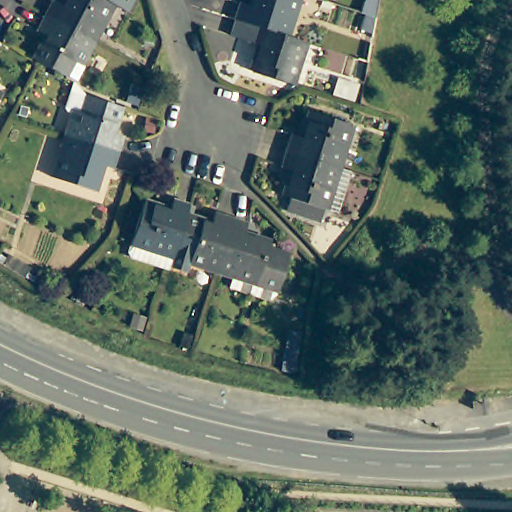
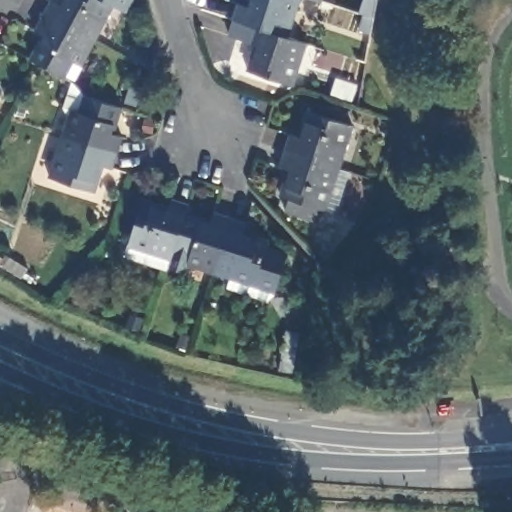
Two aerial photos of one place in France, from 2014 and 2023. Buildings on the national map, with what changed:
unchanged [(57,2),(68,7),(72,0),(138,0),(131,12),(117,4),(97,41),(77,31),(50,17),(57,2)]
unchanged [(282,33),(253,24),(249,22),(236,18),(232,17),(230,16),(236,0),(237,0),(248,4),(250,0),(293,0),(282,33)]
unchanged [(79,84),(76,80),(69,77),(44,63),(40,61),(52,37),(41,32),(50,17),(77,31),(97,41),(85,66),(87,67),(79,84)]
unchanged [(236,18),(249,22),(253,24),(282,33),(300,40),(286,81),(247,67),(256,42),(227,32),(232,17),(236,18)]
unchanged [(72,106),(80,109),(87,92),(119,102),(110,129),(122,134),(117,148),(64,132),(72,106)]
unchanged [(288,150),(293,135),(304,139),(313,114),(353,127),(340,167),(288,150)]
unchanged [(117,148),(111,166),(99,162),(91,187),(50,174),(64,132),(117,148)]
unchanged [(339,169),(352,173),(341,209),(328,204),(327,205),(287,192),(294,170),(283,166),(288,150),(340,167),(339,169)]
unchanged [(174,247),(174,248),(171,257),(129,243),(142,203),(168,212),(172,200),(188,205),(184,217),(174,247)]
unchanged [(189,262),(185,273),(168,268),(171,257),(174,248),(174,247),(184,217),(209,225),(213,213),(229,218),(213,270),(189,262)]
unchanged [(349,223),(344,236),(331,230),(335,217),(349,223)]
unchanged [(267,301),(226,288),(230,276),(213,270),(229,218),(246,223),(242,236),(267,244),(264,251),(286,258),(277,284),(274,295),(267,301)]
unchanged [(284,373),(289,333),(302,334),(297,374),(284,373)]

